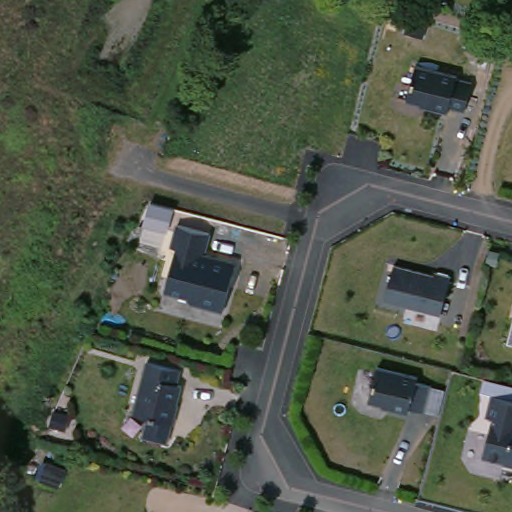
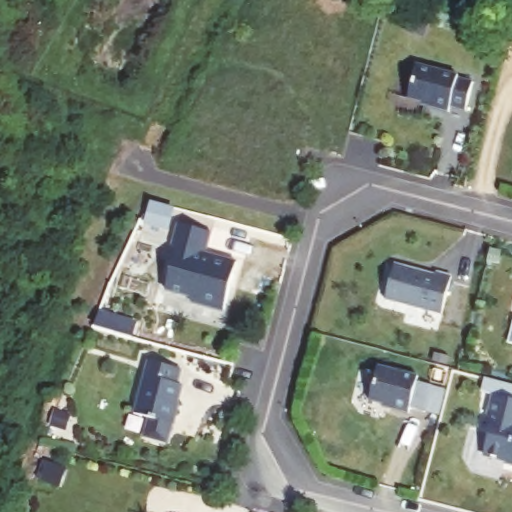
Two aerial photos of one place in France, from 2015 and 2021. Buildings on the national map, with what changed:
unchanged [(459,77),(459,79),(474,83),(467,112),(451,108),(450,113),(433,109),(433,106),(408,101),(417,66),(459,77)]
unchanged [(223,311),(191,302),(188,295),(164,288),(176,245),(170,244),(176,221),(210,230),(204,252),(211,254),(209,259),(216,261),(217,255),(236,261),(223,311)]
unchanged [(436,272),(438,269),(453,272),(443,311),(386,298),(395,262),(436,272)]
unchanged [(186,366),(182,381),(187,382),(178,421),(138,412),(151,357),(186,366)]
unchanged [(424,375),(423,379),(441,383),(434,407),(417,403),(416,409),(400,405),(400,404),(378,399),(386,366),(424,375)]
unchanged [(511,453),(489,448),(498,411),(492,410),(498,388),(512,392),(512,456),(510,456),(511,453)]

